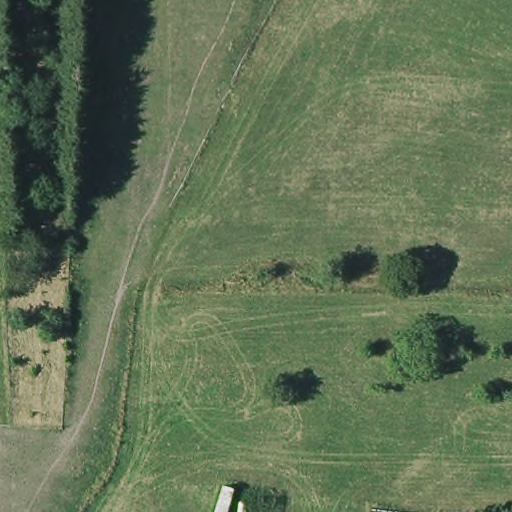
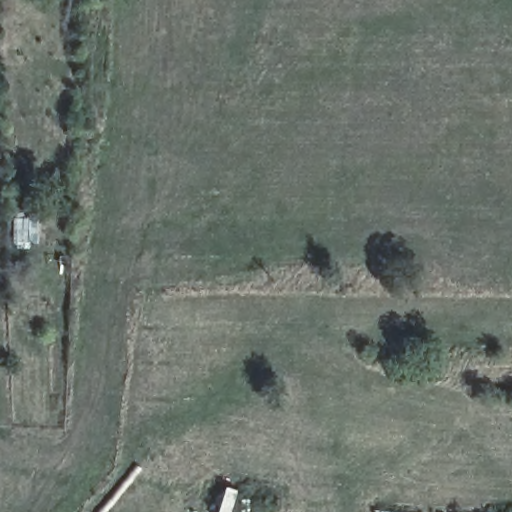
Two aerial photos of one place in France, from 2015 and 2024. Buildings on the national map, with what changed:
[]

